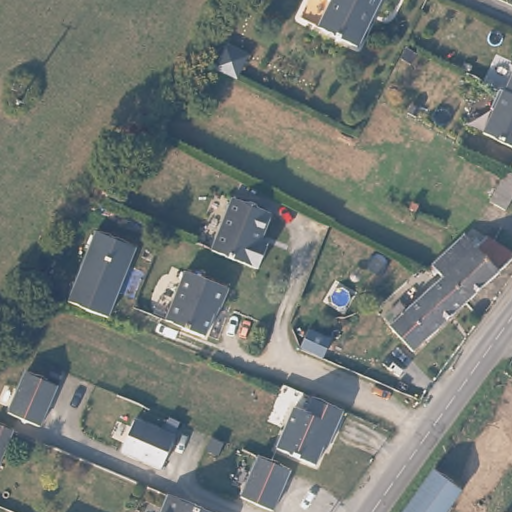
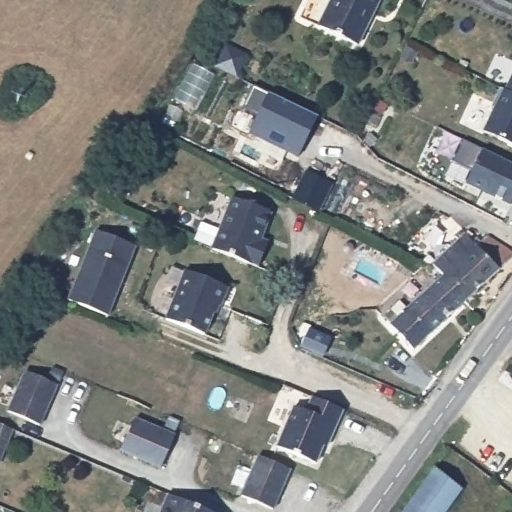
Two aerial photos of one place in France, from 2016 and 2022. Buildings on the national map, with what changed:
unchanged [(365,41),(329,24),(339,0),(384,0),(365,41)]
unchanged [(240,79),(215,65),(227,41),(251,54),(240,79)]
unchanged [(484,132),(512,75),(512,145),(484,132)]
new [(249,134),(259,114),(245,107),(254,86),(268,94),(318,117),(297,159),(249,134)]
new [(448,174),(464,141),(482,150),(512,165),(512,204),(511,206),(467,185),(448,174)]
demolished [(512,170),(512,191),(503,207),(489,200),(502,171),(504,165),(512,170)]
unchanged [(229,195),(268,210),(257,236),(265,240),(255,264),(209,246),(229,195)]
demolished [(419,205),(415,212),(410,212),(407,208),(411,200),(419,205)]
unchanged [(136,249),(109,316),(68,300),(96,232),(136,249)]
unchanged [(438,267),(444,262),(443,261),(473,234),(485,245),(495,236),(509,245),(512,247),(512,264),(477,297),(452,270),(447,266),(441,271),(438,267)]
unchanged [(425,351),(397,324),(405,316),(398,309),(407,300),(414,307),(452,270),(477,297),(425,351)]
unchanged [(236,290),(229,308),(225,307),(213,337),(175,321),(194,273),(236,290)]
unchanged [(27,365),(60,377),(46,416),(13,404),(27,365)]
unchanged [(329,400),(339,406),(327,436),(323,435),(313,459),(275,445),(292,403),(304,406),(310,393),(329,400)]
unchanged [(179,423),(168,455),(126,437),(136,406),(179,423)]
unchanged [(0,449),(0,421),(10,425),(0,449)]
unchanged [(261,453),(294,467),(278,506),(245,493),(261,453)]
unchanged [(445,512),(401,512),(433,467),(461,486),(445,512)]
unchanged [(222,512),(159,512),(168,490),(222,512)]

